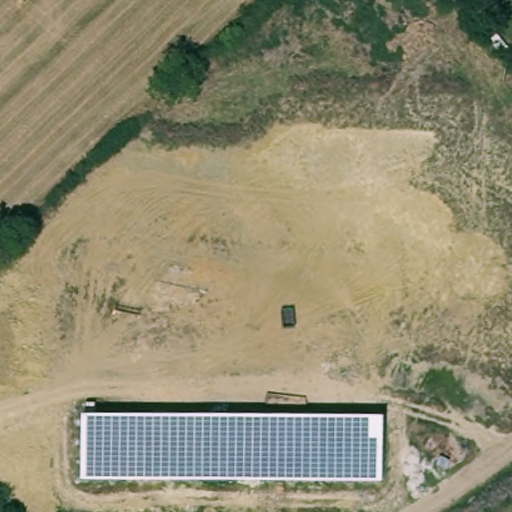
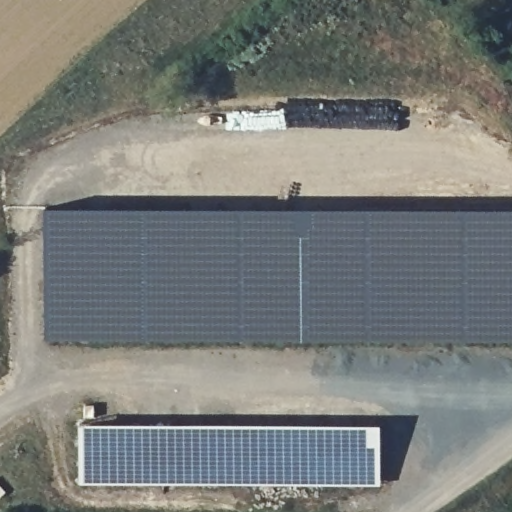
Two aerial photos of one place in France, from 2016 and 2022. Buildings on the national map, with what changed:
new [(48,338),(47,205),(512,206),(512,339),(48,338)]
unchanged [(381,422),(379,488),(80,487),(80,421),(381,422)]

